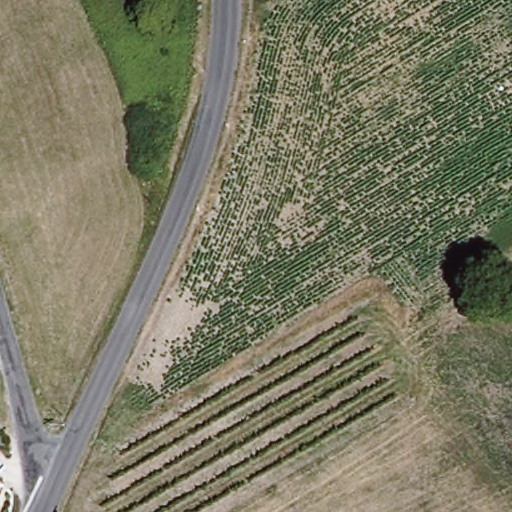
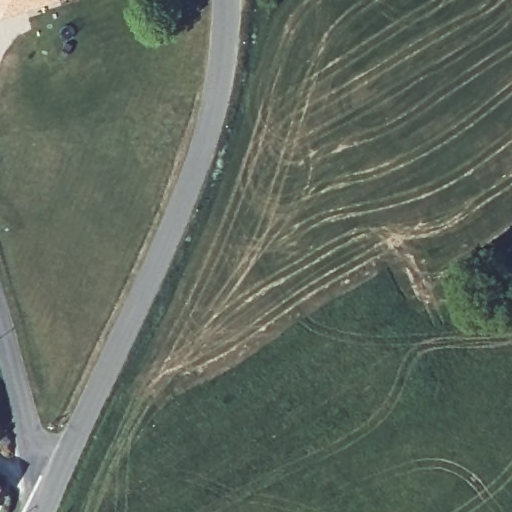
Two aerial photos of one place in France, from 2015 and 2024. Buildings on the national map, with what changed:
new [(0,0),(73,0),(44,11),(41,4),(1,16),(0,11),(0,0)]
demolished [(126,3),(124,0),(131,0),(126,3)]
unchanged [(0,486),(0,482),(1,483),(0,486)]

